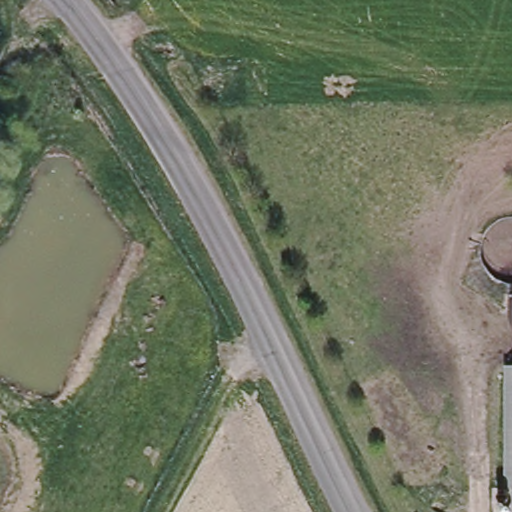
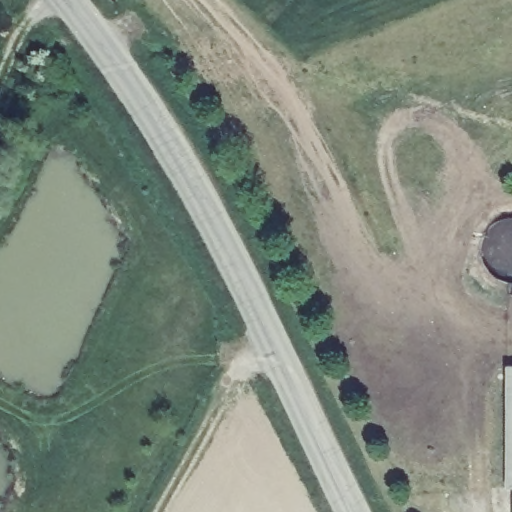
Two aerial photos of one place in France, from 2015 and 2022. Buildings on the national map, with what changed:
unchanged [(507,483),(508,363),(512,363),(512,487),(506,487),(507,483)]

